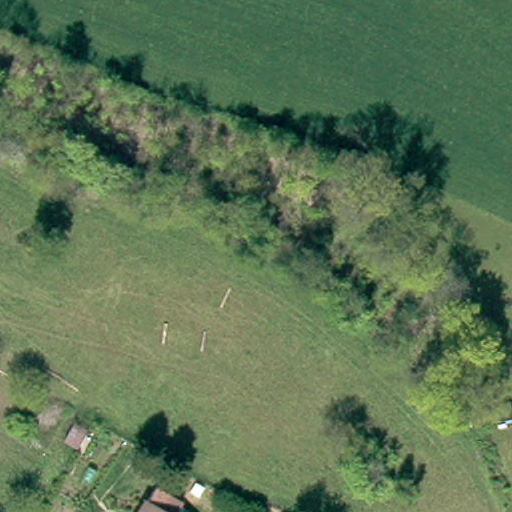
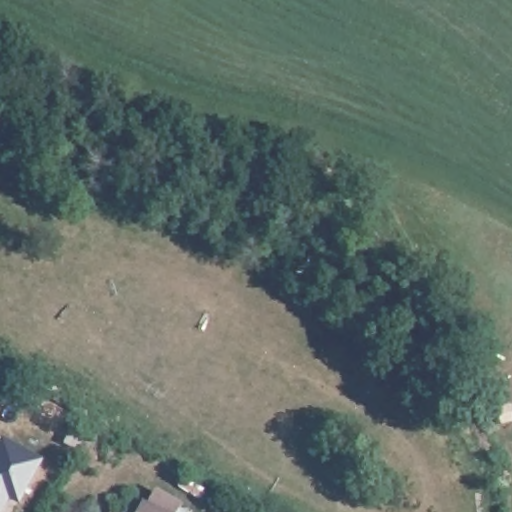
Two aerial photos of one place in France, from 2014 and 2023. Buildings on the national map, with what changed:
new [(4,440),(42,461),(22,496),(18,503),(8,498),(0,512),(0,448),(4,440)]
unchanged [(144,512),(148,504),(160,512),(144,512)]

